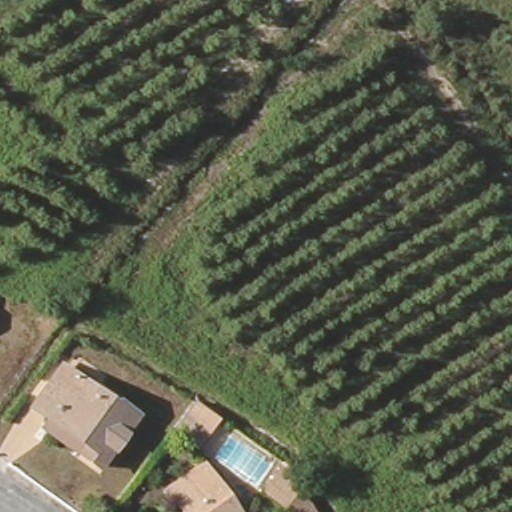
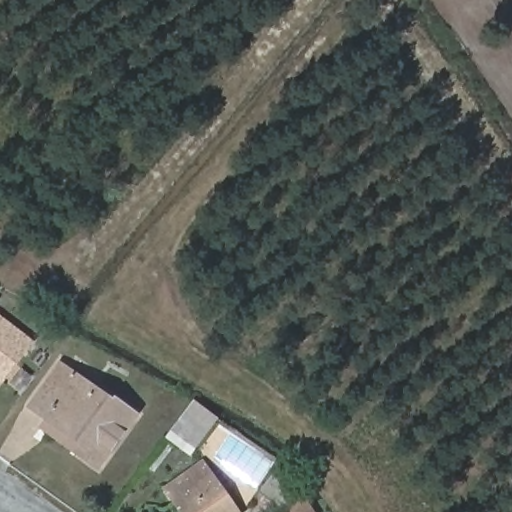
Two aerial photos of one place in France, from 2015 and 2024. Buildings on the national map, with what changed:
new [(0,384),(0,321),(31,344),(0,384)]
unchanged [(56,416),(39,403),(70,362),(122,404),(124,401),(140,414),(102,464),(84,450),(49,423),(56,416)]
unchanged [(226,413),(205,442),(182,424),(200,400),(204,395),(226,413)]
unchanged [(307,481),(286,510),(262,492),(283,461),(307,481)]
unchanged [(167,492),(203,466),(238,512),(182,512),(176,504),(167,492)]

